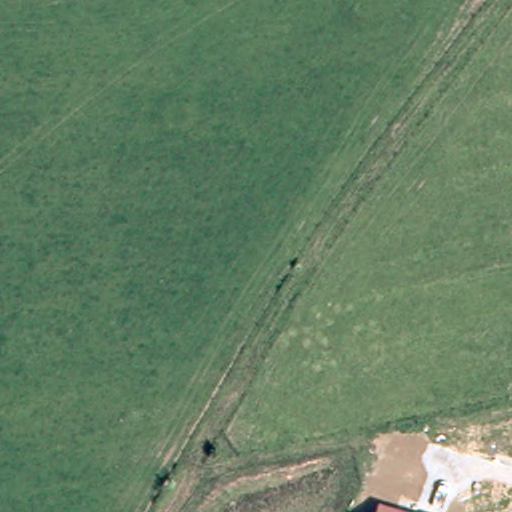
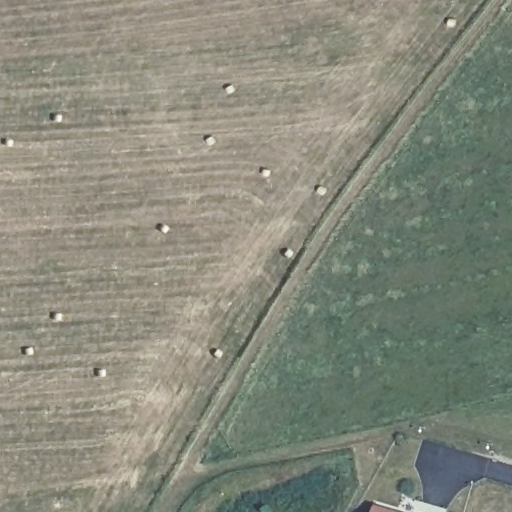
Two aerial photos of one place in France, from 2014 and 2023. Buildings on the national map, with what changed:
unchanged [(375,512),(378,504),(403,512),(375,512)]

